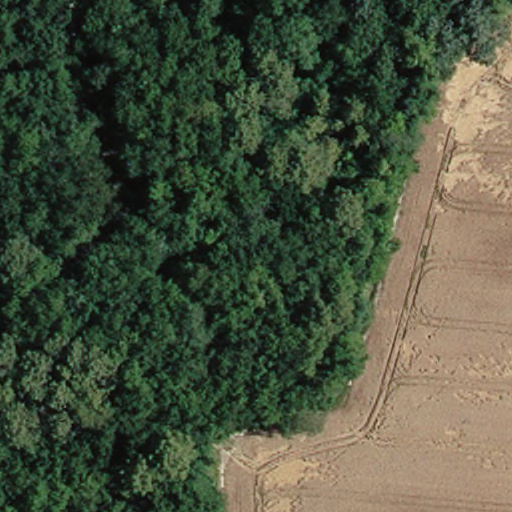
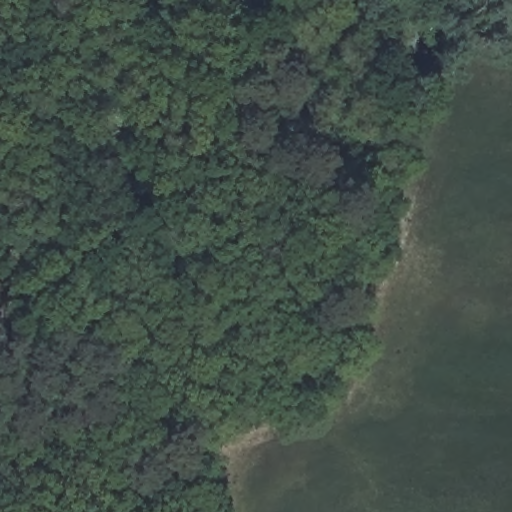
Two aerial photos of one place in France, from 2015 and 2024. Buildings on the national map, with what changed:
[]

